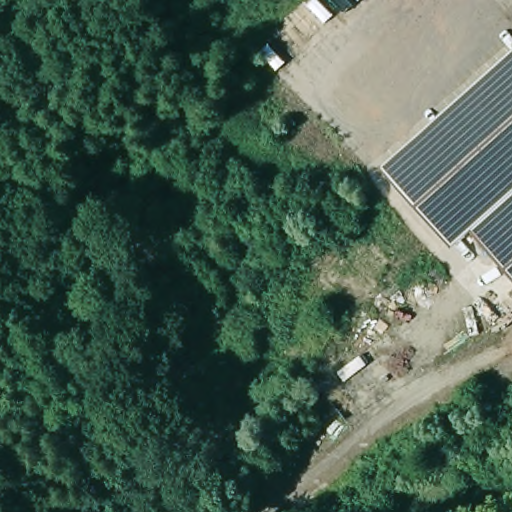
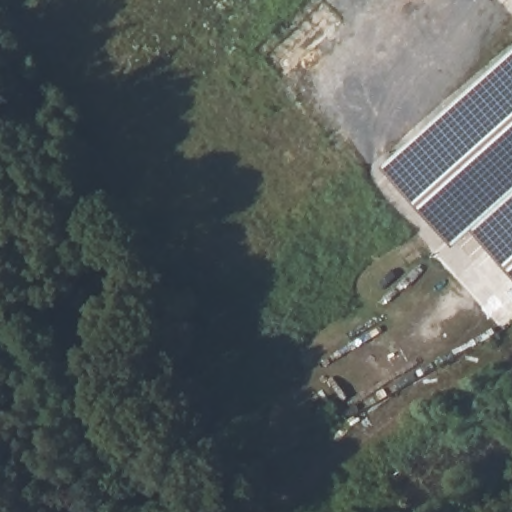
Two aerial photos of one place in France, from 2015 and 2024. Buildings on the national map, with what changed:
unchanged [(442,231),(387,170),(512,61),(512,271),(461,213),(442,231)]

